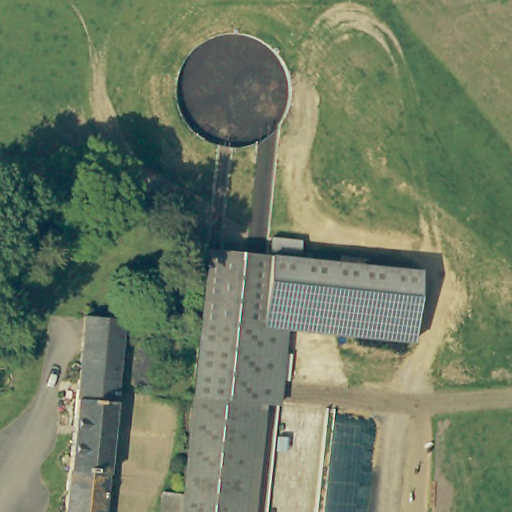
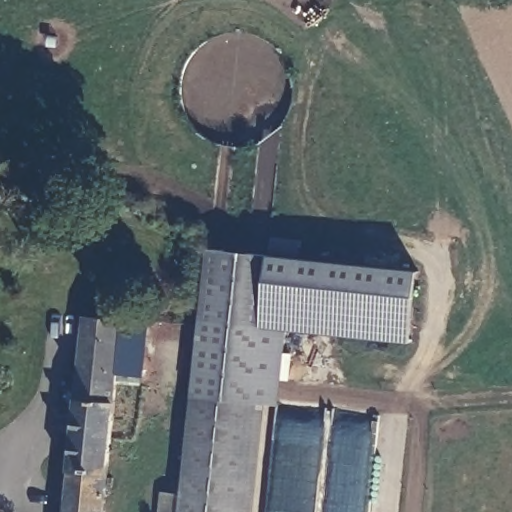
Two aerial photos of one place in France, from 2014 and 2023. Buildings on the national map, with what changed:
unchanged [(254,327),(262,259),(270,260),(270,236),(299,240),(298,258),(417,270),(408,342),(281,330),(254,327)]
unchanged [(262,259),(254,327),(195,321),(203,251),(262,259)]
unchanged [(69,469),(84,311),(121,315),(107,470),(69,469)]
unchanged [(195,321),(254,327),(281,330),(273,403),(247,400),(188,393),(195,321)]
unchanged [(177,494),(178,479),(188,393),(247,400),(236,512),(156,512),(158,492),(177,494)]
unchanged [(107,470),(103,512),(65,512),(69,469),(107,470)]

